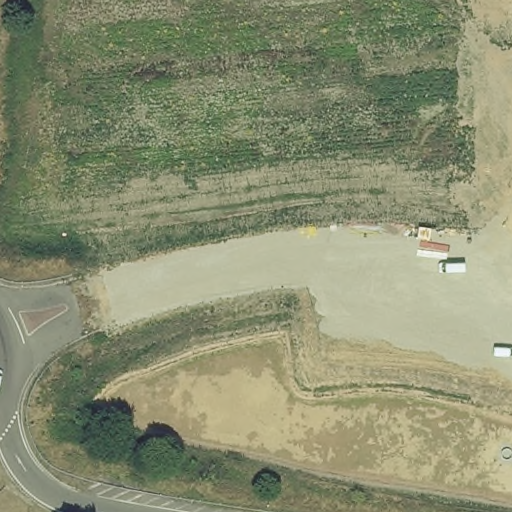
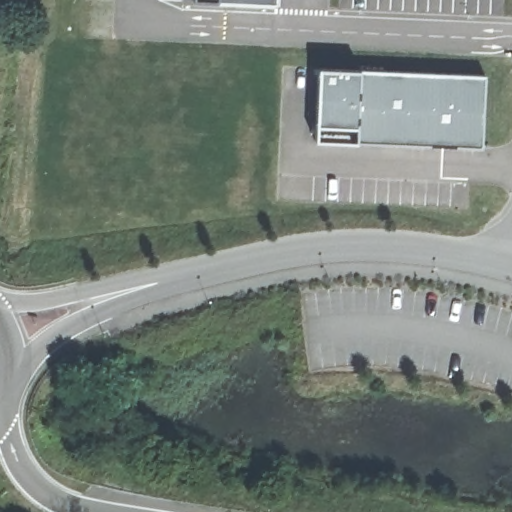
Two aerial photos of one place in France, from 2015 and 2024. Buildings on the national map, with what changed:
new [(233,0),(275,0),(274,2),(233,0)]
new [(318,66),(485,74),(481,147),(314,140),(318,66)]

